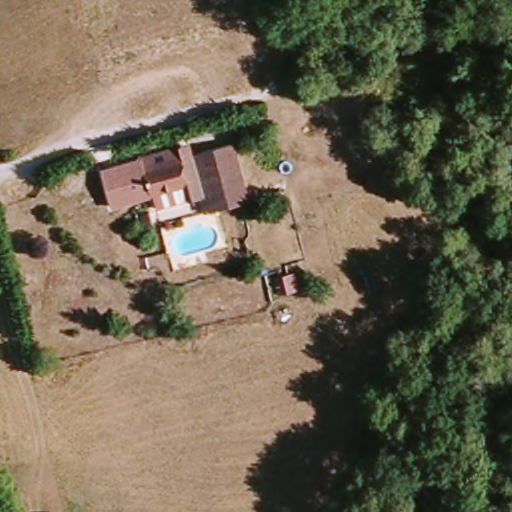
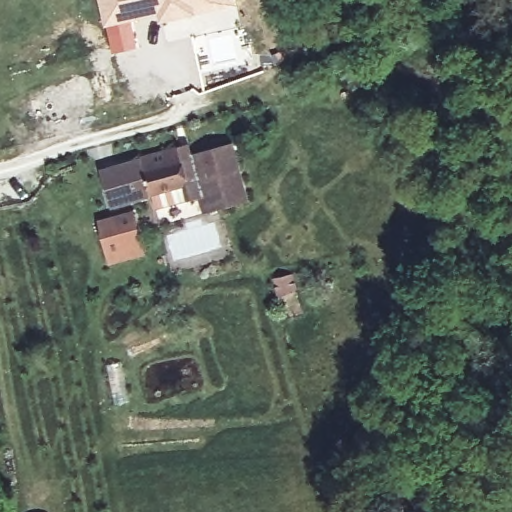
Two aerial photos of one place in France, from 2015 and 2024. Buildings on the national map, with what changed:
new [(194,13),(161,19),(159,11),(106,22),(101,0),(211,0),(211,1),(192,5),(194,13)]
unchanged [(210,209),(207,192),(190,195),(188,182),(154,188),(155,198),(140,201),(137,189),(142,188),(136,160),(148,157),(146,149),(180,143),(182,155),(201,151),(201,148),(232,143),(238,141),(248,203),(241,203),(210,209)]
unchanged [(112,207),(101,169),(136,160),(142,188),(137,189),(140,201),(112,207)]
new [(137,211),(147,253),(110,264),(99,221),(137,211)]
unchanged [(265,283),(266,288),(278,287),(281,303),(269,305),(269,309),(254,310),(251,285),(265,283)]

